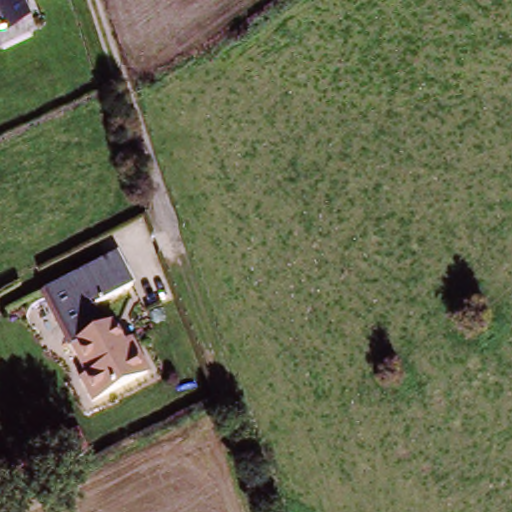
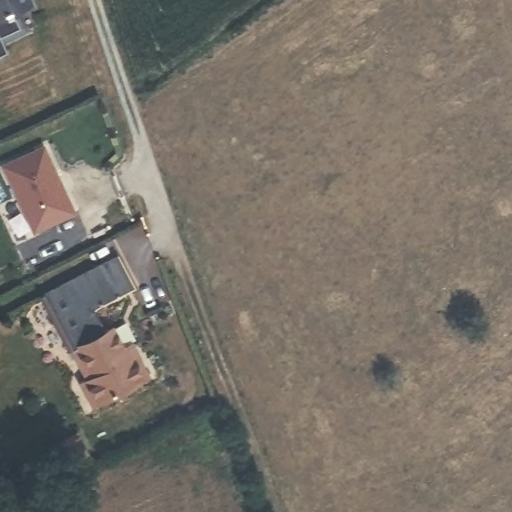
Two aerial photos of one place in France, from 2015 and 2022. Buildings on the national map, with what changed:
unchanged [(34,0),(36,6),(0,20),(0,0),(34,0)]
new [(76,214),(33,233),(1,165),(43,146),(76,214)]
unchanged [(135,361),(144,381),(86,409),(75,385),(79,383),(40,300),(113,265),(129,298),(98,314),(108,335),(113,334),(120,350),(128,346),(135,361)]

